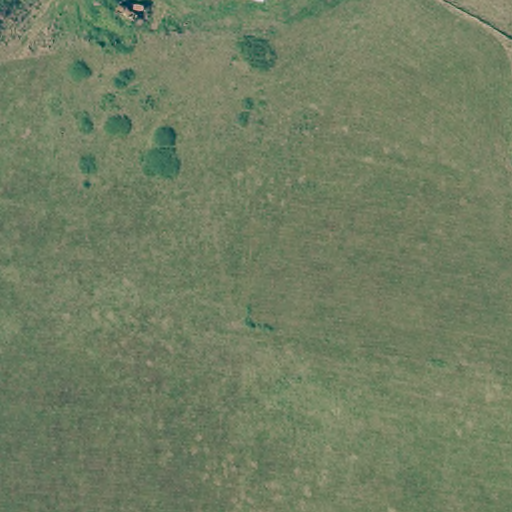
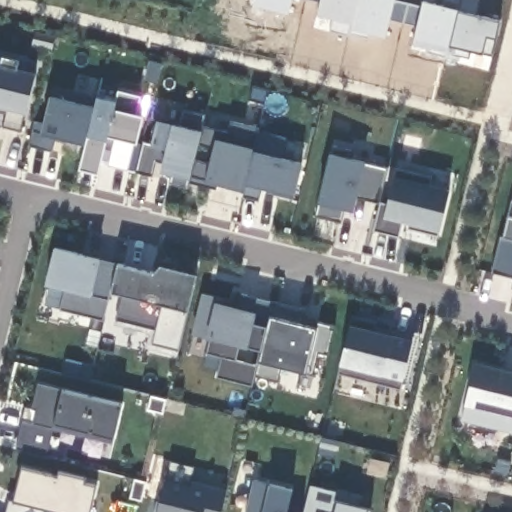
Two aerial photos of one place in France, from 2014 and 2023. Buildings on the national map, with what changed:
new [(54,46),(34,42),(37,30),(56,34),(54,46)]
new [(20,132),(2,127),(5,114),(0,113),(0,56),(3,57),(19,62),(17,69),(35,73),(26,114),(20,132)]
new [(164,60),(159,80),(146,77),(151,57),(164,60)]
new [(30,144),(36,118),(46,120),(55,84),(99,94),(87,142),(58,135),(54,150),(30,144)]
new [(117,99),(120,87),(143,93),(139,111),(145,112),(139,141),(116,135),(111,157),(104,155),(101,171),(81,166),(99,94),(117,99)]
new [(269,91),(266,105),(250,101),(254,87),(269,91)]
new [(294,197),(259,189),(257,201),(242,197),(243,192),(229,189),(227,187),(215,184),(215,190),(188,182),(187,187),(170,184),(172,175),(162,172),(164,162),(154,161),(151,177),(136,174),(144,143),(151,146),(156,120),(173,124),(179,127),(183,110),(204,115),(202,127),(229,134),(232,123),(286,137),(280,159),(302,164),(294,197)]
new [(357,198),(354,212),(342,209),(340,222),(315,218),(319,202),(331,153),(333,147),(349,152),(346,157),(365,162),(364,165),(388,170),(378,203),(357,198)]
new [(438,237),(409,229),(409,225),(400,222),(398,236),(374,231),(381,204),(388,206),(394,176),(396,169),(431,179),(428,185),(451,191),(438,237)]
new [(493,274),(511,202),(512,202),(512,279),(493,274)]
new [(177,357),(144,350),(149,334),(114,326),(121,295),(110,292),(103,321),(59,310),(62,300),(48,297),(48,286),(44,285),(54,248),(100,259),(118,264),(153,273),(160,266),(197,275),(177,357)]
new [(511,290),(512,286),(512,290),(511,290)]
new [(328,354),(319,352),(312,376),(307,373),(280,367),(277,382),(254,376),(250,386),(218,377),(222,357),(208,353),(205,338),(192,336),(202,295),(220,298),(214,302),(237,307),(240,296),(303,310),(301,318),(334,327),(328,354)]
new [(351,325),(353,317),(377,323),(373,331),(392,335),(393,332),(414,337),(413,341),(402,382),(399,388),(339,375),(351,325)]
new [(461,422),(464,406),(474,362),(512,372),(512,434),(461,422)]
new [(113,440),(53,427),(46,456),(15,450),(25,407),(33,408),(39,384),(63,390),(121,406),(113,440)]
new [(42,512),(6,512),(9,500),(14,502),(23,468),(58,477),(59,472),(84,478),(84,482),(96,486),(89,512),(58,512),(43,508),(42,512)]
new [(163,498),(168,477),(194,484),(195,479),(230,487),(224,512),(157,512),(161,497),(163,498)]
new [(297,486),(291,510),(302,512),(249,512),(258,477),(297,486)]
new [(339,487),(337,497),(374,505),(372,512),(306,512),(314,482),(339,487)]

